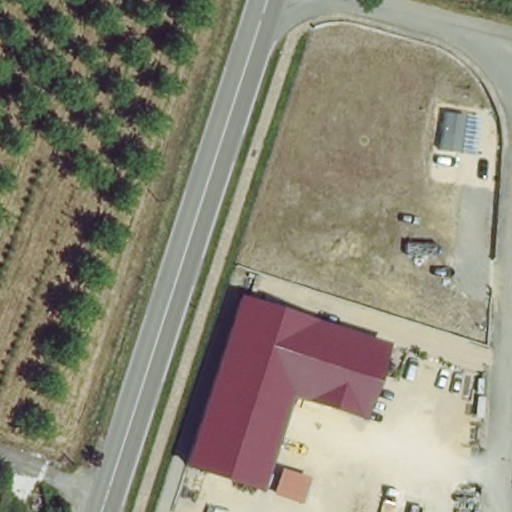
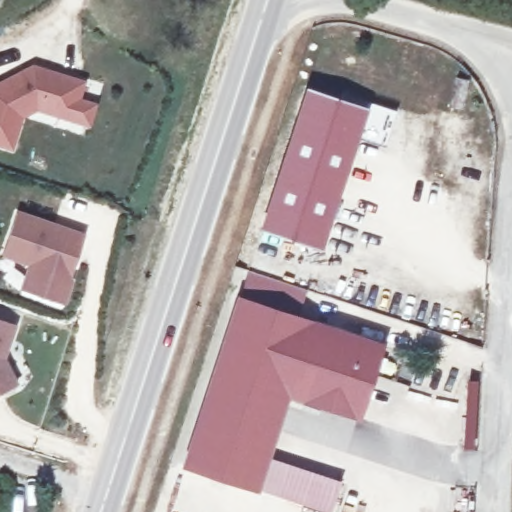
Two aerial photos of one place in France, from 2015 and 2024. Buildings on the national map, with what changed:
new [(83,85),(78,108),(94,113),(86,137),(49,126),(52,121),(32,117),(23,127),(13,158),(0,153),(0,85),(32,68),(83,85)]
new [(368,120),(316,269),(253,247),(304,98),(368,120)]
new [(72,271),(78,273),(65,319),(16,302),(26,274),(0,265),(0,262),(18,216),(81,240),(72,271)]
unchanged [(361,421),(288,399),(268,467),(259,494),(180,470),(238,297),(388,343),(361,421)]
new [(3,352),(3,363),(11,392),(0,396),(0,322),(13,328),(3,352)]
new [(305,477),(296,506),(259,494),(268,467),(305,477)]
new [(0,497),(0,494),(1,494),(0,497)]

